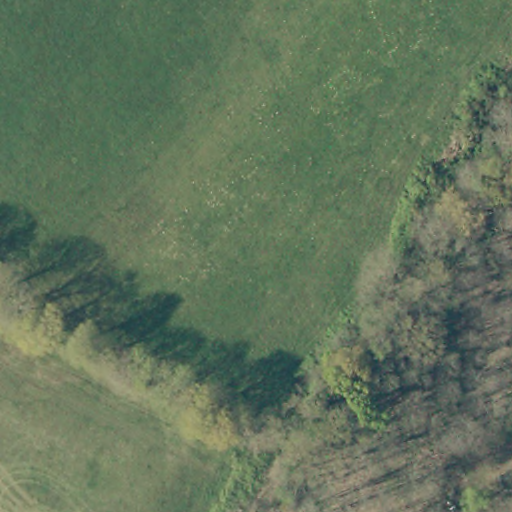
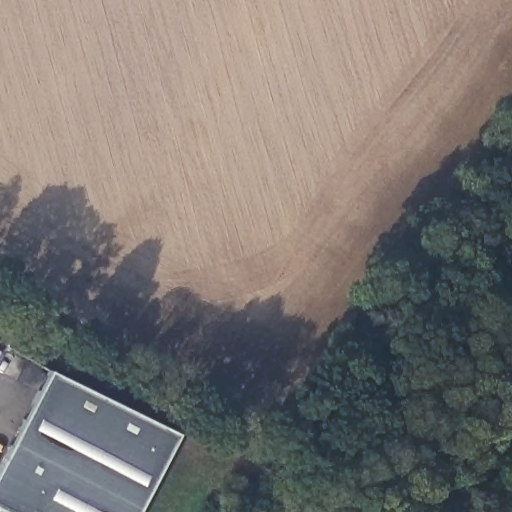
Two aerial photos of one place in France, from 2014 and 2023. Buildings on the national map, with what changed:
new [(178,434),(137,512),(5,512),(0,509),(0,468),(51,371),(178,434)]

